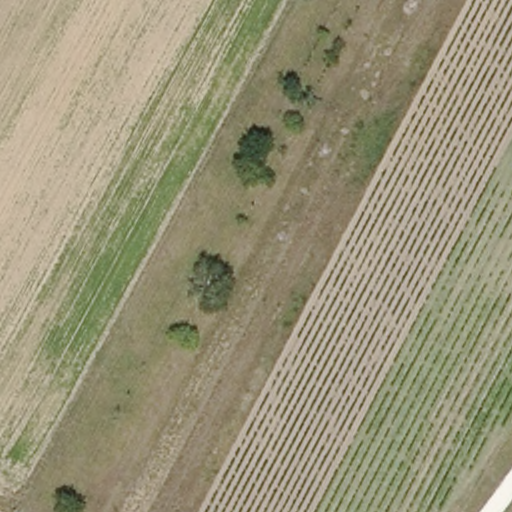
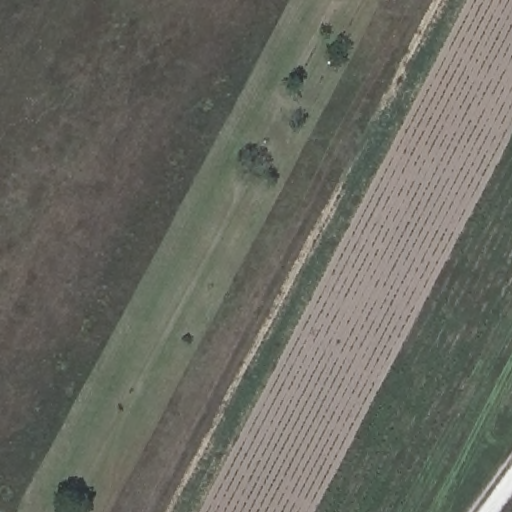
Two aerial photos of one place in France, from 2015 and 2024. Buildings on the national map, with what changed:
[]

